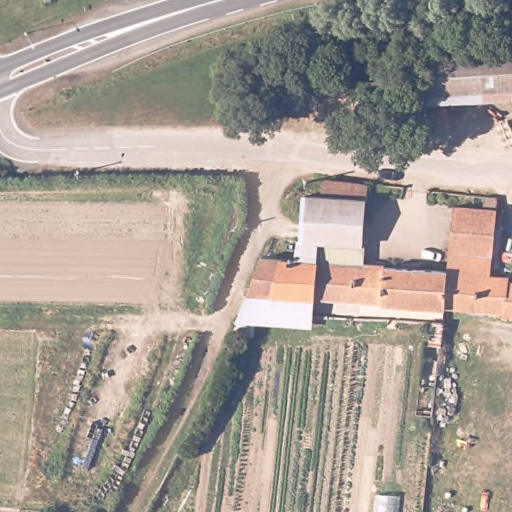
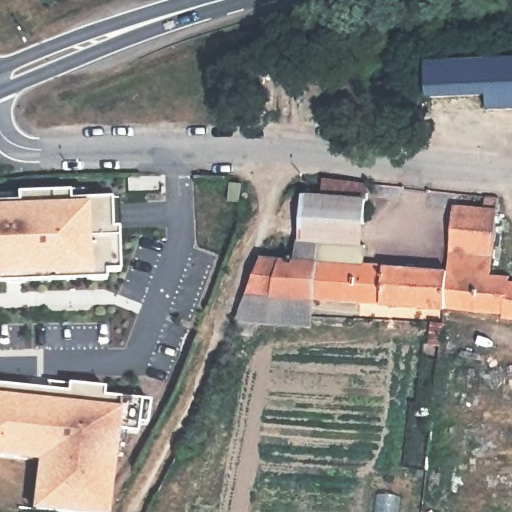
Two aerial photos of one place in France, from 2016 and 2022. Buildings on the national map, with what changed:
unchanged [(421,54),(512,48),(512,93),(423,99),(421,54)]
unchanged [(278,79),(278,116),(253,116),(252,79),(278,79)]
unchanged [(251,300),(266,259),(297,260),(298,244),(303,243),(307,200),(322,201),(324,182),(368,187),(368,204),(365,245),(320,243),(320,263),(363,266),(357,307),(317,304),(316,319),(272,317),(273,302),(251,300)]
new [(18,204),(17,195),(70,193),(70,201),(111,199),(113,229),(119,229),(120,272),(75,274),(75,282),(0,284),(0,205),(18,204)]
unchanged [(357,307),(363,266),(320,263),(320,243),(365,245),(370,246),(368,267),(452,273),(456,209),(482,210),(482,198),(500,200),(495,277),(453,274),(451,312),(357,307)]
unchanged [(453,274),(495,277),(512,278),(512,321),(507,320),(507,314),(451,312),(453,274)]
new [(39,463),(18,460),(0,458),(0,386),(47,391),(48,383),(70,385),(105,389),(105,397),(142,401),(151,402),(147,431),(139,429),(139,434),(125,433),(123,457),(114,456),(108,512),(48,512),(43,512),(36,511),(40,483),(36,483),(39,463)]

